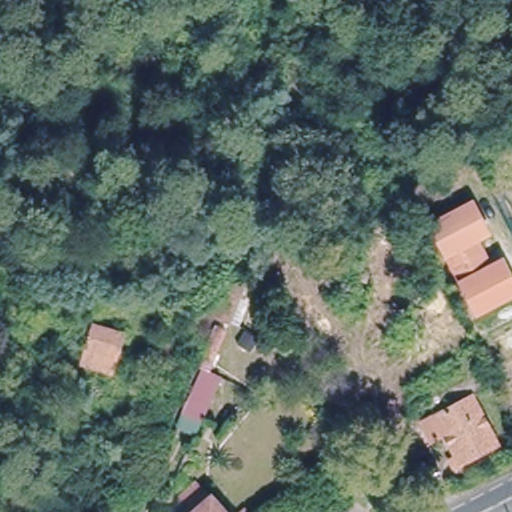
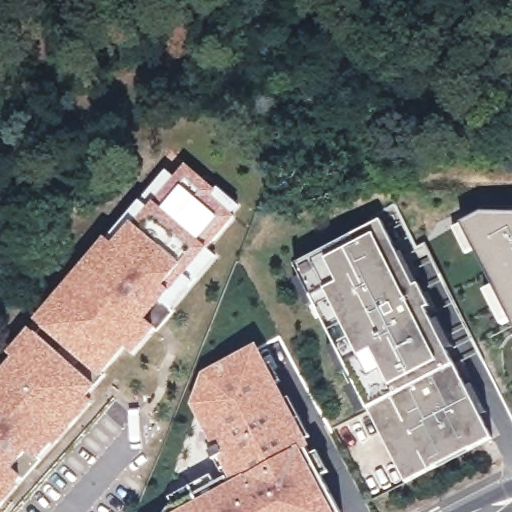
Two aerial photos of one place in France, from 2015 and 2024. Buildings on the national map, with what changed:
new [(35,320),(105,237),(139,201),(165,170),(174,177),(185,164),(216,188),(217,187),(238,203),(231,212),(235,215),(207,249),(216,255),(174,307),(156,328),(137,353),(126,346),(103,377),(35,320)]
demolished [(480,238),(467,245),(483,272),(495,265),(512,295),(472,318),(425,231),(465,209),(480,238)]
new [(485,212),(512,212),(512,328),(510,325),(502,329),(484,290),(491,287),(472,251),(466,254),(452,227),(459,223),(485,212)]
new [(368,410),(293,264),(380,220),(415,287),(420,285),(430,306),(425,309),(455,363),(491,437),(406,482),(368,410)]
demolished [(235,323),(224,318),(236,288),(247,292),(235,323)]
demolished [(225,329),(210,365),(200,361),(214,324),(225,329)]
demolished [(94,329),(122,339),(116,360),(87,350),(94,329)]
new [(15,359),(8,352),(26,333),(90,389),(81,399),(89,405),(54,444),(51,441),(11,485),(15,488),(0,505),(0,376),(15,359)]
new [(304,446),(336,512),(176,512),(230,482),(192,402),(200,373),(257,342),(310,443),(304,446)]
demolished [(210,415),(192,408),(208,368),(226,377),(210,415)]
demolished [(480,386),(487,402),(473,410),(499,456),(462,476),(429,414),(480,386)]
demolished [(182,410),(190,414),(185,427),(182,426),(177,437),(171,436),(182,410)]
demolished [(192,504),(204,493),(221,512),(176,512),(189,499),(192,504)]

